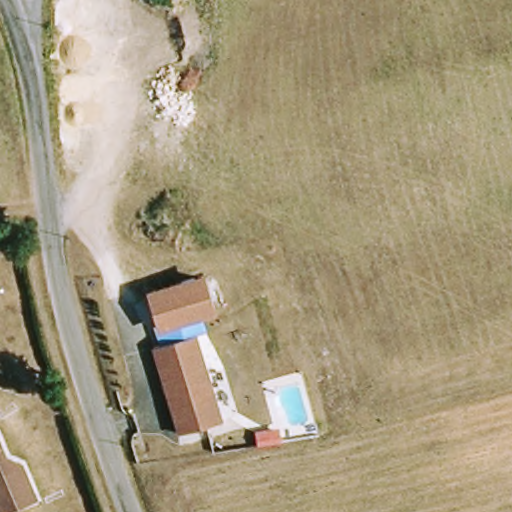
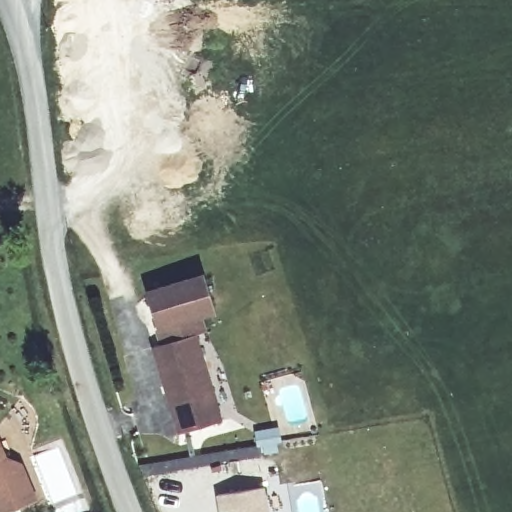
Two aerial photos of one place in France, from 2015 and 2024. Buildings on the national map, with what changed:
unchanged [(201,310),(153,324),(144,290),(206,274),(216,312),(203,316),(201,310)]
unchanged [(153,324),(201,310),(203,316),(207,331),(201,332),(159,344),(153,324)]
unchanged [(159,344),(201,332),(226,418),(184,430),(159,344)]
unchanged [(276,445),(263,447),(261,436),(276,435),(276,445)]
unchanged [(21,467),(37,505),(17,512),(0,512),(0,447),(4,458),(21,467)]
new [(270,512),(220,512),(218,494),(266,486),(270,512)]

